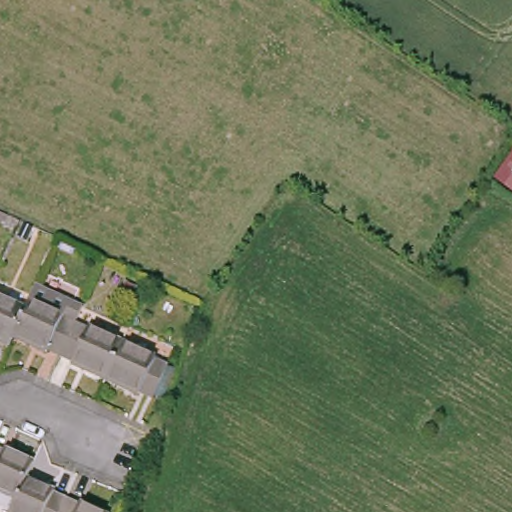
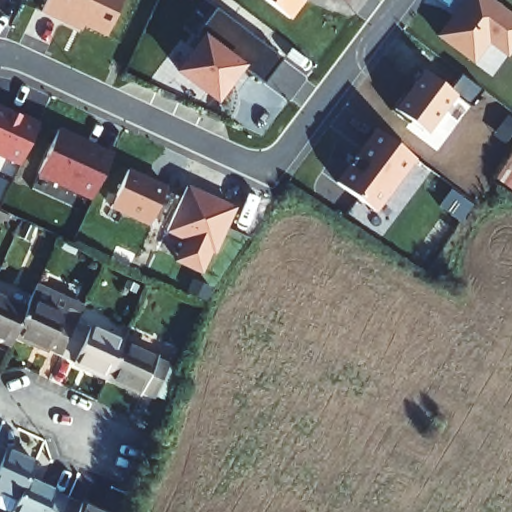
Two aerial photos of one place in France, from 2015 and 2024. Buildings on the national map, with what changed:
new [(82,28),(80,32),(46,16),(48,11),(42,8),(46,0),(123,0),(105,39),(82,28)]
new [(291,19),(266,0),(305,0),(291,19)]
new [(512,18),(512,51),(507,58),(488,44),(472,65),(435,36),(463,0),(489,0),(512,18)]
new [(282,59),(265,82),(244,67),(217,103),(173,71),(202,35),(197,32),(215,10),(282,59)]
new [(447,86),(457,72),(481,90),(470,106),(455,95),(427,134),(395,110),(425,71),(447,86)]
new [(20,169),(0,159),(0,106),(40,125),(20,169)]
new [(114,153),(92,202),(37,176),(58,128),(114,153)]
new [(414,160),(376,215),(335,184),(375,130),(414,160)]
new [(167,185),(148,227),(110,209),(127,169),(167,185)]
new [(235,208),(213,256),(210,255),(200,275),(172,264),(184,241),(166,234),(187,187),(235,208)]
unchanged [(78,321),(63,355),(50,348),(47,352),(14,336),(27,308),(30,300),(37,284),(85,305),(78,321)]
unchanged [(0,341),(0,297),(27,308),(14,336),(10,345),(0,341)]
unchanged [(73,365),(75,361),(63,355),(78,321),(125,342),(108,380),(73,365)]
unchanged [(125,342),(171,364),(156,400),(141,392),(140,395),(108,380),(125,342)]
unchanged [(0,482),(0,442),(2,442),(3,440),(32,455),(25,470),(17,489),(0,482)]
unchanged [(26,512),(10,505),(17,489),(25,470),(55,483),(55,486),(67,491),(58,512),(26,512)]
unchanged [(80,494),(110,508),(108,512),(58,512),(67,491),(79,496),(80,494)]

